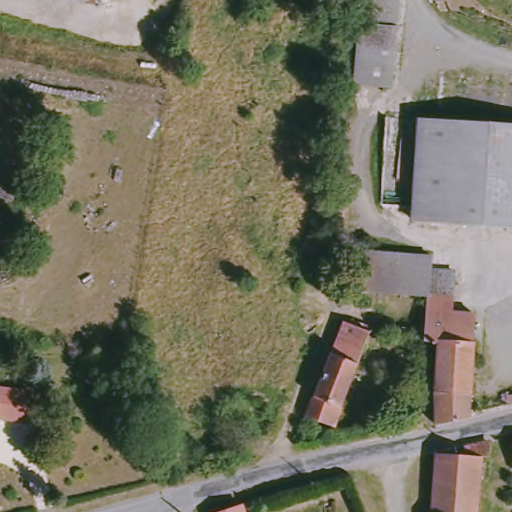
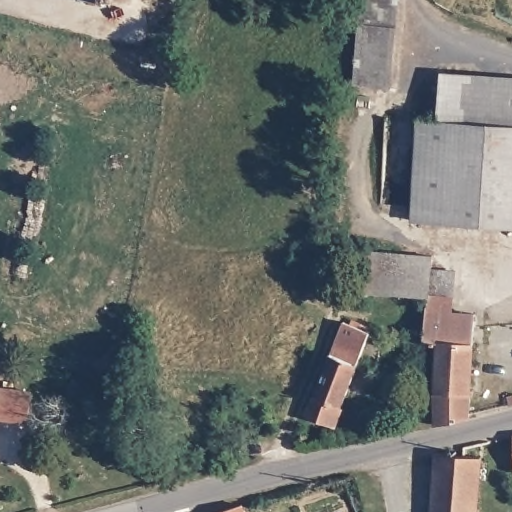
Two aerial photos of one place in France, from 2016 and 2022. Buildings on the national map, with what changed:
unchanged [(390,88),(359,85),(366,0),(397,0),(390,88)]
new [(512,124),(437,119),(442,72),(512,77),(512,124)]
unchanged [(512,224),(415,219),(421,118),(512,124),(512,224)]
unchanged [(476,318),(470,422),(434,430),(438,348),(425,347),(428,300),(425,300),(364,293),(367,251),(433,255),(432,268),(455,270),(453,302),(453,317),(476,318)]
unchanged [(342,321),(372,332),(337,426),(307,416),(342,321)]
unchanged [(29,391),(24,422),(0,417),(0,387),(29,391)]
unchanged [(463,458),(464,451),(490,444),(490,453),(484,453),(479,512),(433,512),(437,457),(463,458)]
unchanged [(244,512),(226,512),(242,507),(244,512)]

